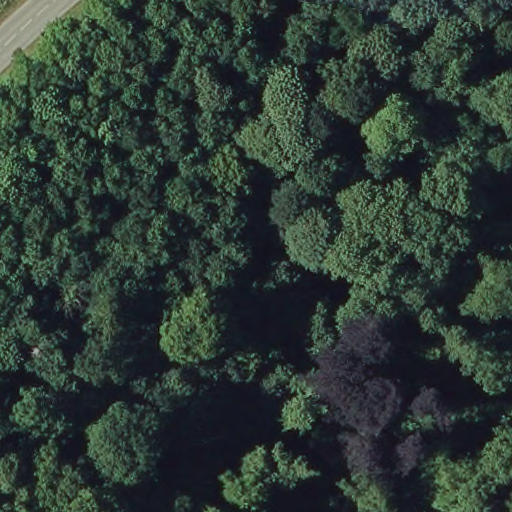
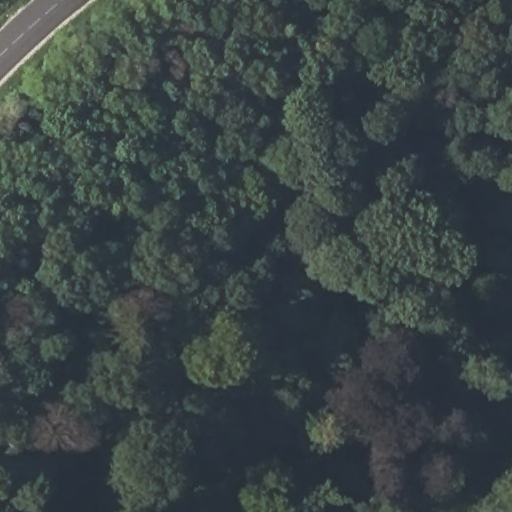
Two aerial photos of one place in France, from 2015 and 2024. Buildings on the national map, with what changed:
[]

